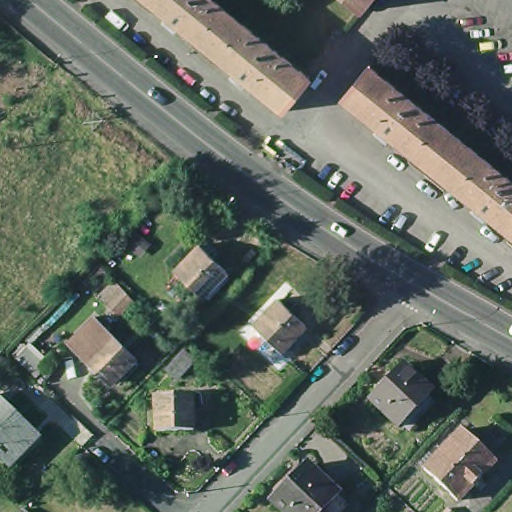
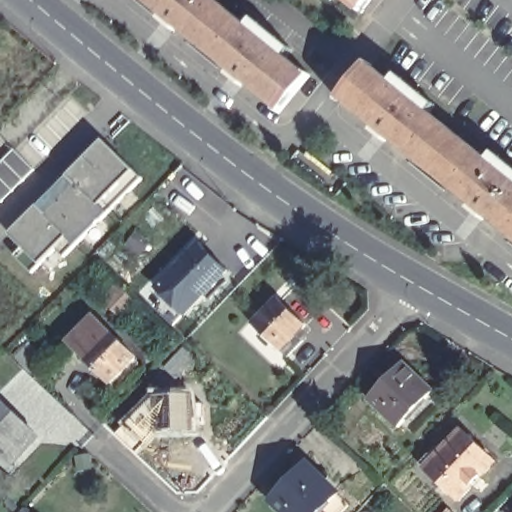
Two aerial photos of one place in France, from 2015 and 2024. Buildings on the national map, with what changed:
unchanged [(310,70),(313,73),(282,110),(280,108),(281,106),(248,80),(245,84),(232,74),(236,70),(180,25),(177,28),(165,18),(167,15),(149,0),(219,0),(308,72),(310,70)]
unchanged [(365,9),(362,11),(348,0),(368,0),(362,7),(365,9)]
unchanged [(391,139),(389,141),(379,132),(381,130),(347,102),(345,105),(342,102),(372,65),(375,67),(373,70),(512,182),(512,235),(490,218),(488,221),(476,211),(478,209),(391,139)]
new [(108,215),(77,246),(63,256),(56,249),(42,263),(32,272),(15,255),(20,250),(5,234),(102,136),(135,169),(143,178),(108,215)]
new [(0,205),(0,164),(15,150),(35,170),(0,205)]
unchanged [(177,277),(202,250),(230,277),(204,303),(177,277)]
new [(118,318),(98,295),(116,280),(135,301),(118,318)]
unchanged [(296,351),(292,347),(282,356),(257,330),(282,305),(308,330),(297,340),(302,345),(296,351)]
unchanged [(72,343),(97,318),(139,358),(114,384),(72,343)]
unchanged [(19,358),(28,349),(47,366),(38,376),(19,358)]
unchanged [(179,378),(168,370),(185,350),(195,359),(179,378)]
unchanged [(368,405),(401,370),(430,398),(398,432),(368,405)]
unchanged [(157,433),(155,396),(191,395),(192,432),(157,433)]
unchanged [(10,468),(0,459),(0,405),(37,440),(10,468)]
unchanged [(460,431),(493,462),(457,501),(423,470),(460,431)]
unchanged [(327,512),(288,512),(267,492),(300,456),(330,483),(327,485),(340,497),(327,512)]
unchanged [(450,507),(456,512),(445,512),(450,507)]
unchanged [(22,511),(23,512),(21,512),(22,511)]

